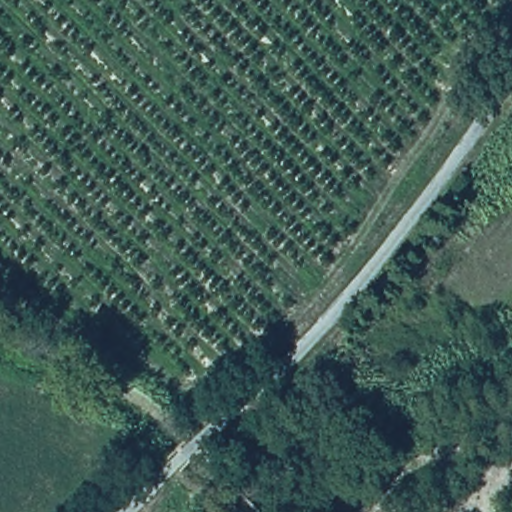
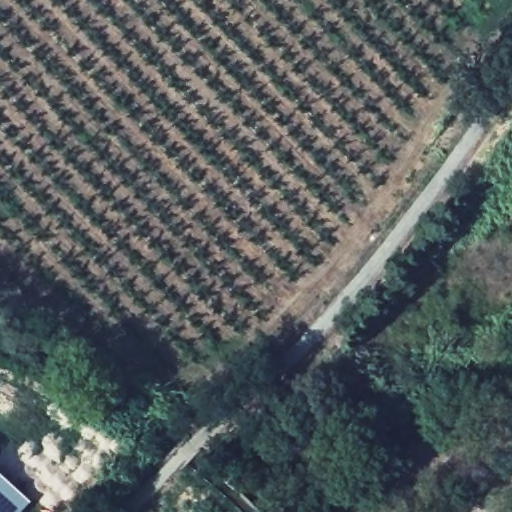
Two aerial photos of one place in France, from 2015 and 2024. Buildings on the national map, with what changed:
new [(31,501),(21,512),(0,512),(0,472),(31,501)]

